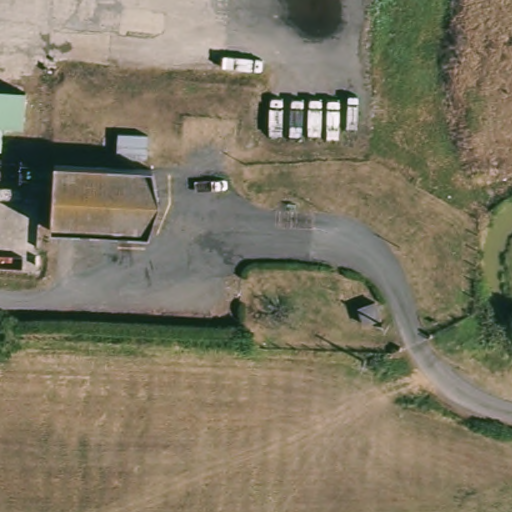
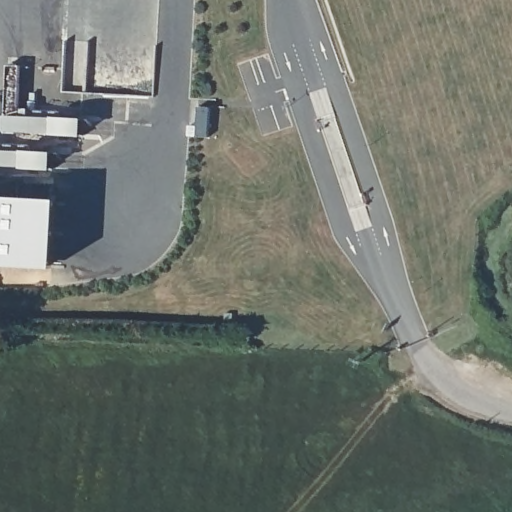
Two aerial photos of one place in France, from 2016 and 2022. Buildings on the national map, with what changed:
demolished [(0,128),(0,94),(24,96),(20,129),(0,128)]
new [(55,154),(53,199),(64,200),(60,268),(0,265),(0,152),(55,154)]
demolished [(48,231),(55,167),(151,174),(161,206),(146,237),(48,231)]

